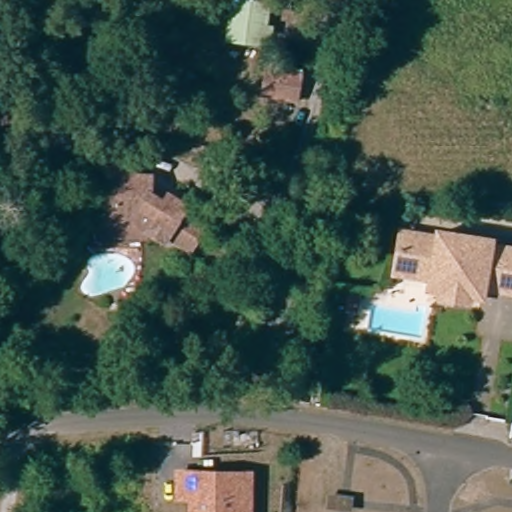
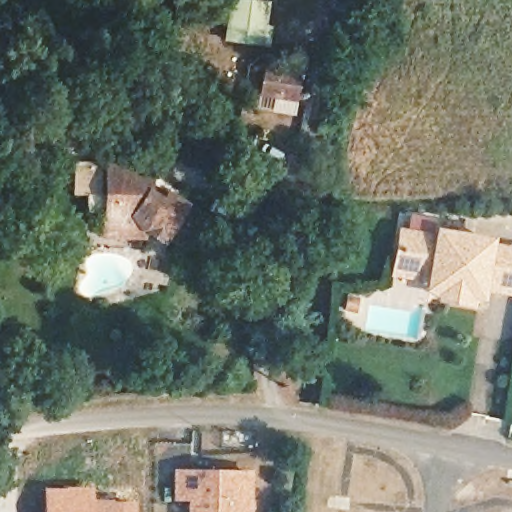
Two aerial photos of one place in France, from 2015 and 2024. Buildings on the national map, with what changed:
unchanged [(253,42),(224,38),(230,0),(246,0),(261,1),(253,42)]
unchanged [(293,72),(291,99),(259,95),(262,68),(293,72)]
unchanged [(67,142),(50,155),(28,126),(48,111),(67,142)]
unchanged [(100,146),(125,146),(126,174),(142,176),(140,192),(101,190),(100,146)]
unchanged [(140,192),(140,196),(154,199),(194,224),(182,249),(133,234),(134,218),(101,217),(101,190),(140,192)]
unchanged [(435,231),(486,243),(485,255),(512,260),(512,284),(508,300),(471,293),(470,303),(422,291),(424,281),(389,272),(398,232),(432,241),(435,231)]
unchanged [(187,501),(174,500),(174,470),(253,471),(253,512),(187,512),(187,501)]
new [(42,487),(94,485),(93,498),(134,499),(133,512),(42,512),(42,487)]
demolished [(429,512),(428,512),(417,512),(417,510),(429,512)]

